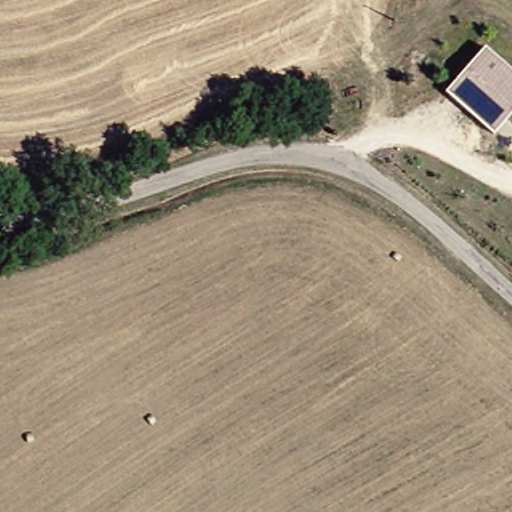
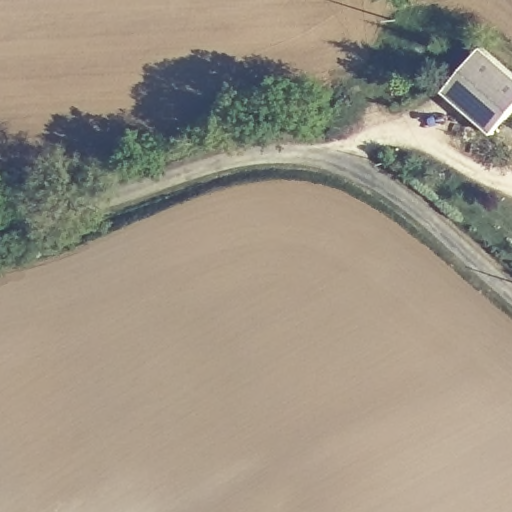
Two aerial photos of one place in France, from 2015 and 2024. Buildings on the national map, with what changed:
unchanged [(512,111),(489,134),(445,91),(485,50),(512,75),(512,111)]

